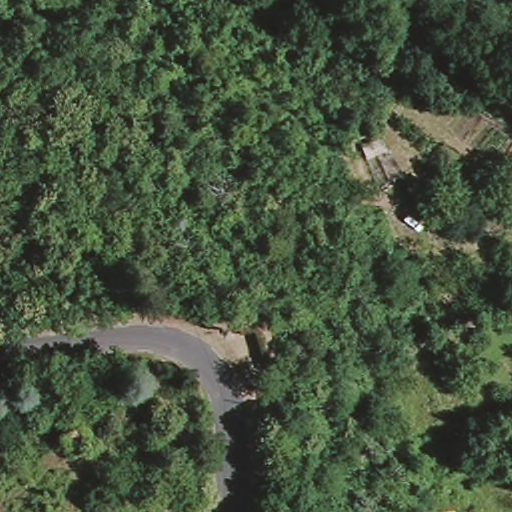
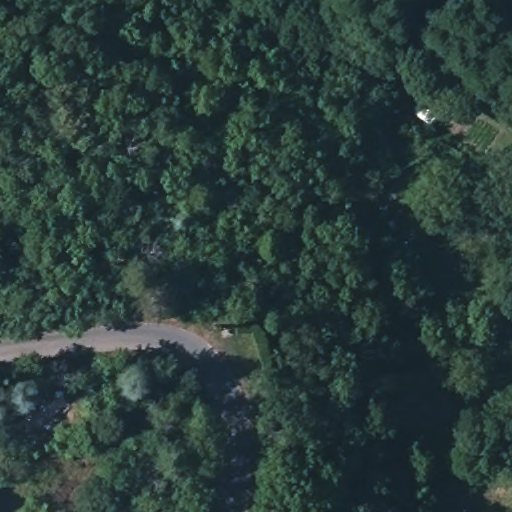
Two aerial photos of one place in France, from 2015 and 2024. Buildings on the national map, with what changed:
unchanged [(347,371),(369,363),(379,387),(358,396),(347,371)]
unchanged [(78,419),(88,435),(69,448),(58,432),(78,419)]

